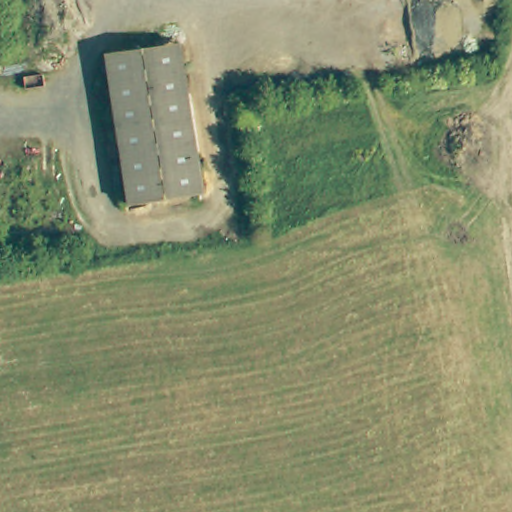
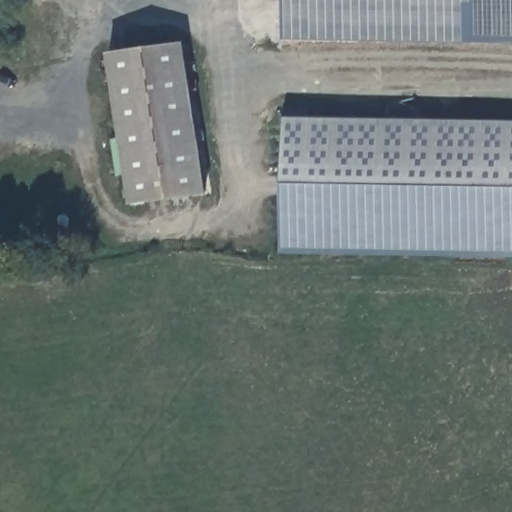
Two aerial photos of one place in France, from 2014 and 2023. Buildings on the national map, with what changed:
new [(512,45),(284,42),(284,0),(512,0),(512,45)]
unchanged [(203,194),(129,206),(107,55),(182,45),(203,194)]
new [(512,258),(281,252),(283,118),(512,121),(512,258)]

